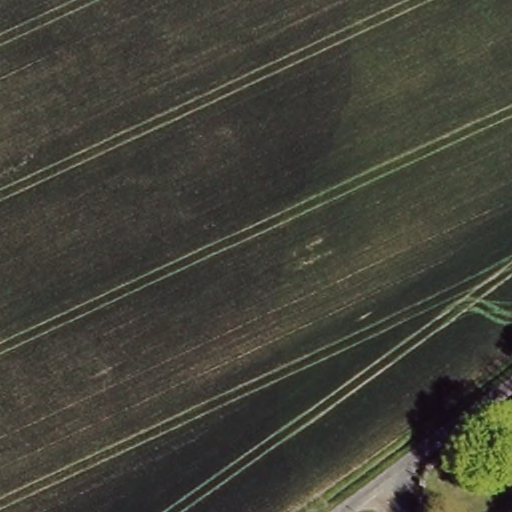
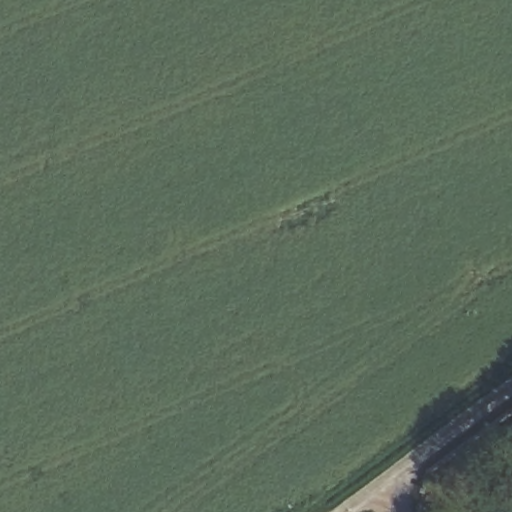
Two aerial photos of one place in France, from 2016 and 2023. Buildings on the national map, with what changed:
[]

